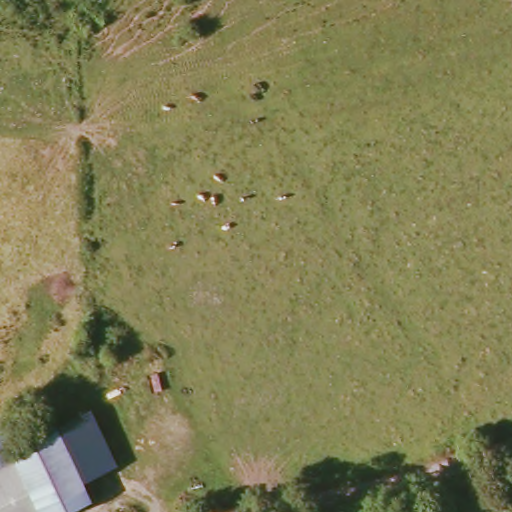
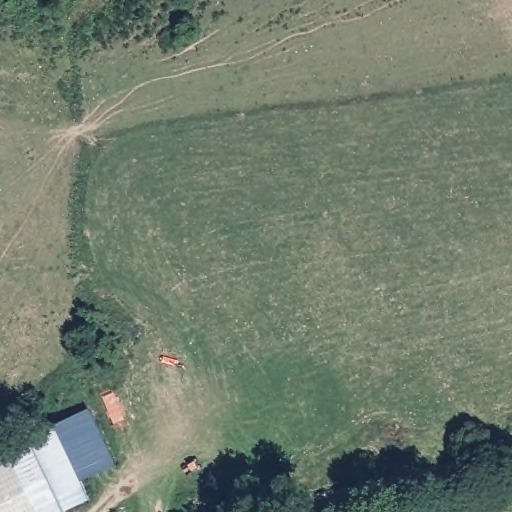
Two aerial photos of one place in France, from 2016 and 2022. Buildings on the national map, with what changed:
unchanged [(66,512),(0,512),(0,431),(10,450),(57,426),(91,500),(66,512)]

